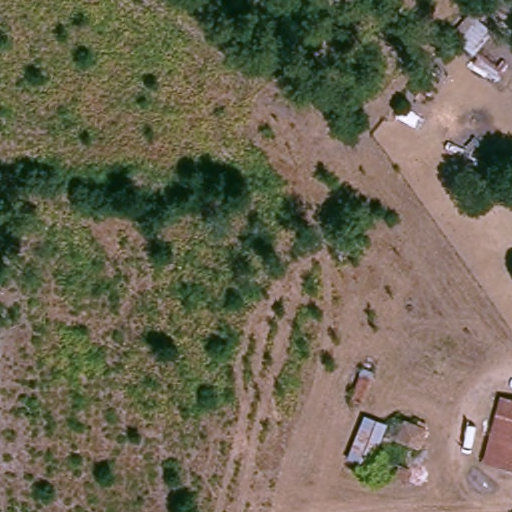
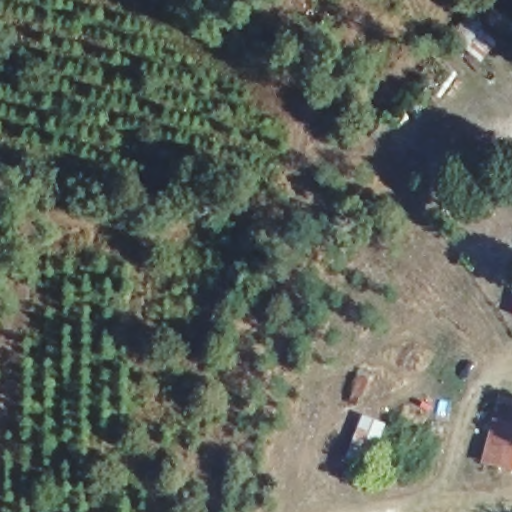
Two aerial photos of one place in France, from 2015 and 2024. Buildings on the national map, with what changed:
unchanged [(500,399),(512,402),(512,470),(483,463),(500,399)]
unchanged [(373,470),(349,460),(367,416),(391,425),(373,470)]
unchanged [(412,473),(380,461),(397,419),(428,430),(412,473)]

